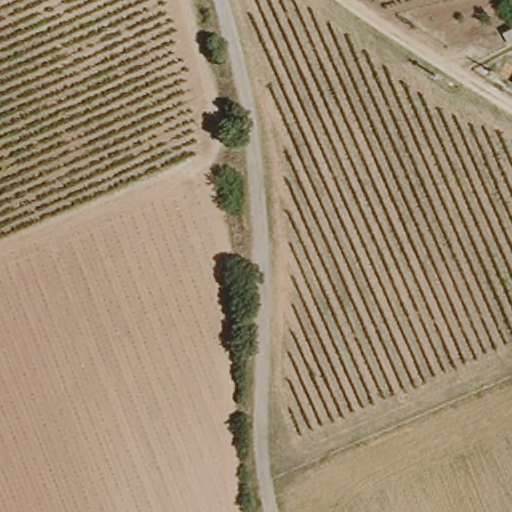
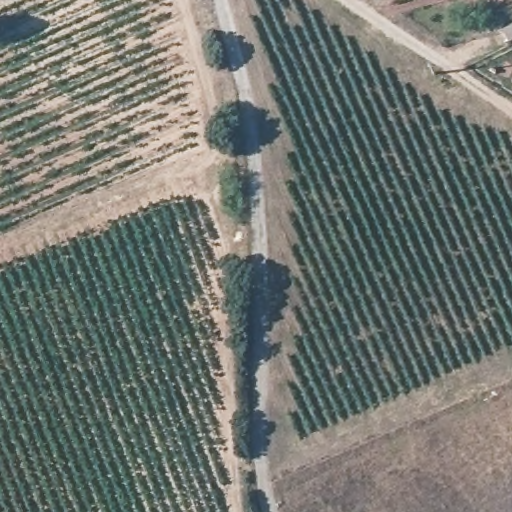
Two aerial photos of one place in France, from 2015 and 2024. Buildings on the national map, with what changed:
unchanged [(512,26),(512,43),(511,44),(503,30),(512,26)]

